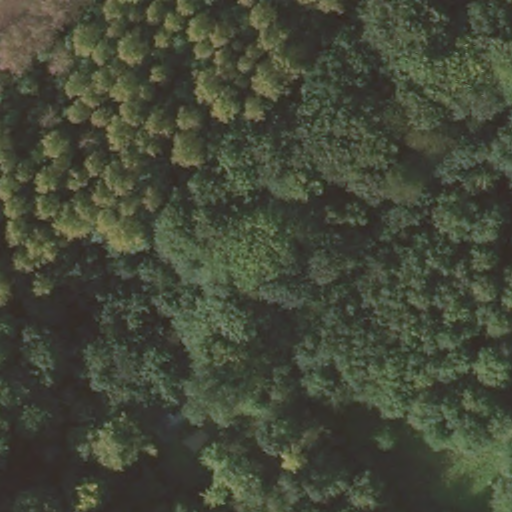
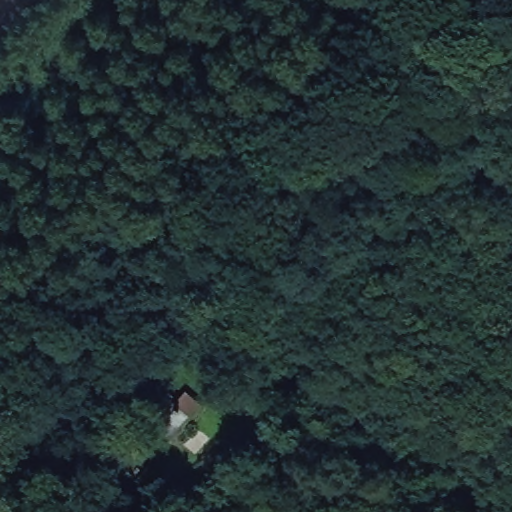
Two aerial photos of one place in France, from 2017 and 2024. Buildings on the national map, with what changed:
unchanged [(138,419),(157,394),(172,408),(184,395),(201,412),(170,447),(138,419)]

